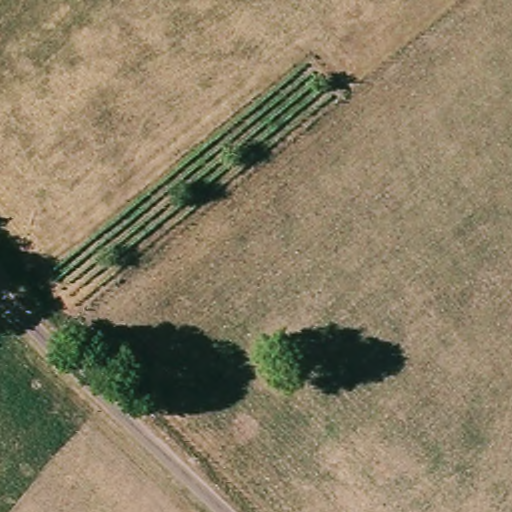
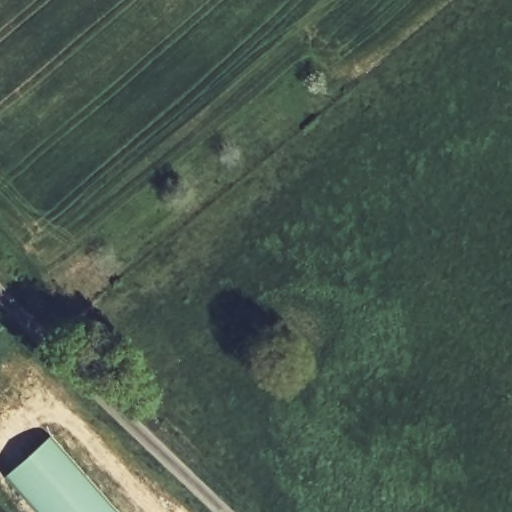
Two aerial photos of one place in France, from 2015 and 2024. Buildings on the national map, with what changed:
new [(50,436),(117,512),(40,512),(7,475),(50,436)]

